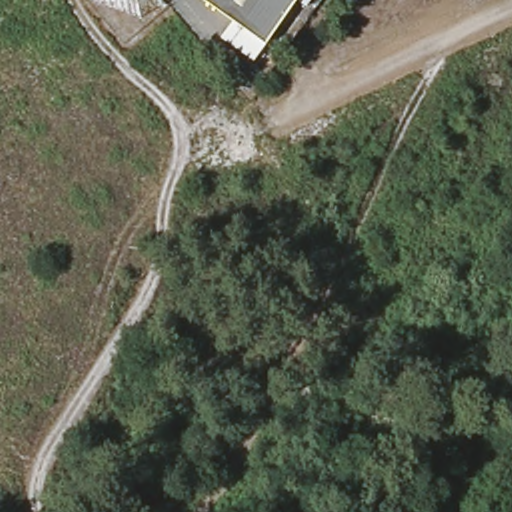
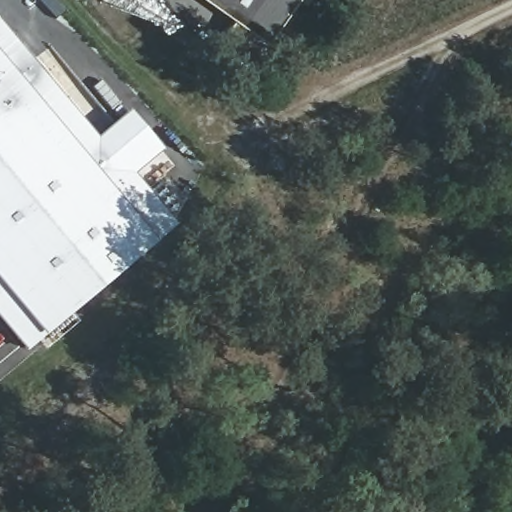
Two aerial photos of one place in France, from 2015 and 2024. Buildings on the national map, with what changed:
unchanged [(224,34),(235,18),(210,0),(296,0),(257,56),(224,34)]
new [(125,107),(157,147),(127,172),(169,223),(22,349),(0,324),(0,25),(91,134),(125,107)]

